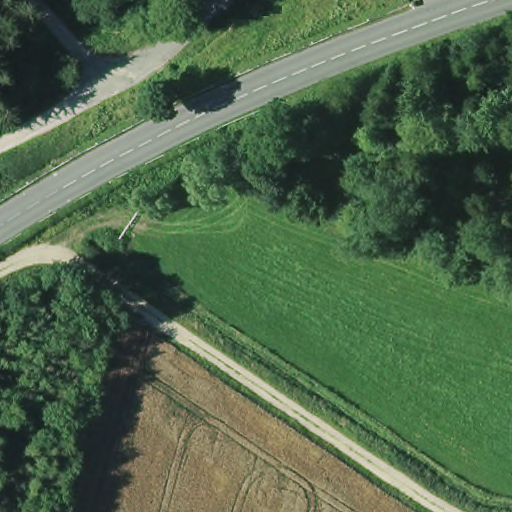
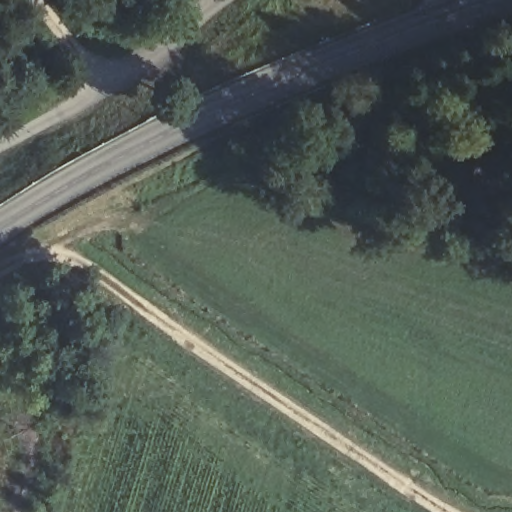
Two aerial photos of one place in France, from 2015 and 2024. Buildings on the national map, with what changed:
[]

